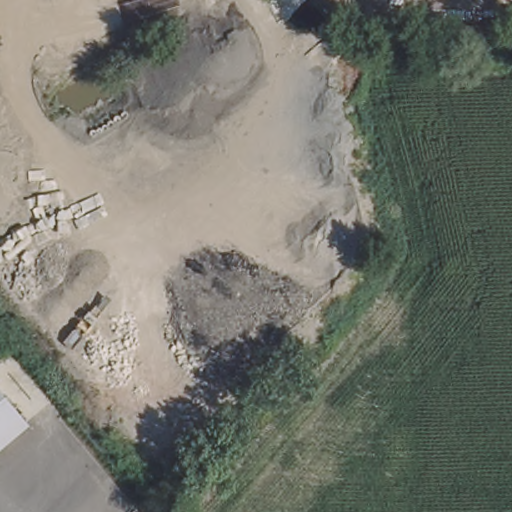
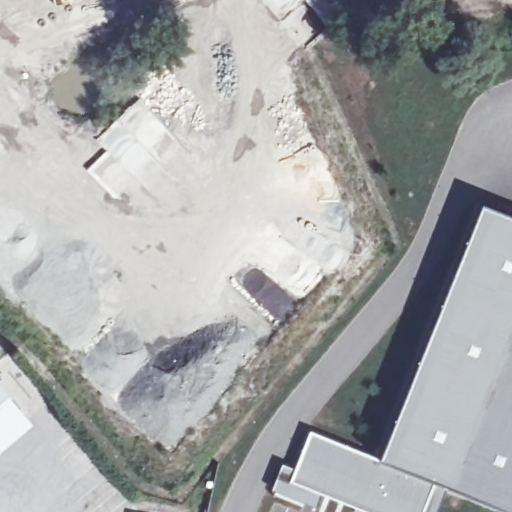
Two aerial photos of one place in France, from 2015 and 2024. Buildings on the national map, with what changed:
new [(320,493),(315,505),(276,489),(284,469),(294,472),(310,431),(379,458),(482,202),(512,214),(512,512),(511,512),(446,486),(435,512),(367,512),(320,493)]
unchanged [(0,453),(0,389),(32,427),(0,453)]

